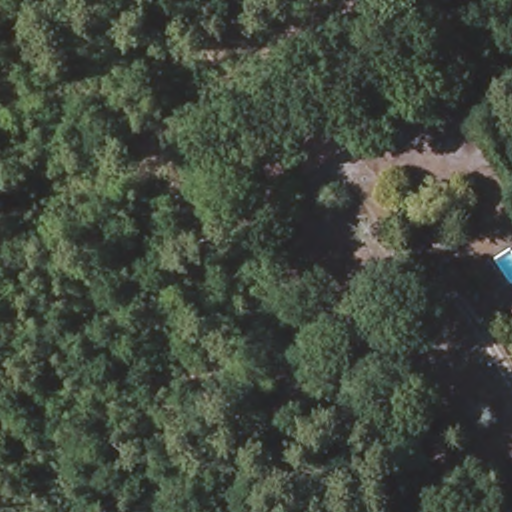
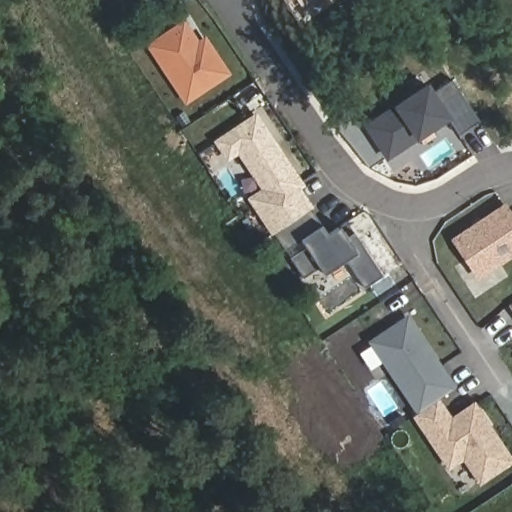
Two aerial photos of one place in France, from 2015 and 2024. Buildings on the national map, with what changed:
new [(305,0),(326,0),(312,10),(306,1),(305,0)]
new [(201,44),(208,39),(231,72),(191,100),(162,58),(154,46),(170,35),(186,23),(201,44)]
new [(435,94),(456,80),(483,121),(461,136),(450,118),(442,123),(390,157),(370,126),(430,87),(435,94)]
new [(311,209),(274,234),(251,200),(265,190),(239,151),(228,159),(217,142),(255,117),(301,185),(297,189),(311,209)]
demolished [(296,191),(274,158),(323,124),(346,157),(296,191)]
new [(512,210),(512,256),(483,276),(458,240),(509,206),(512,210)]
new [(382,277),(364,289),(345,261),(323,275),(319,269),(302,279),(290,259),(305,249),(300,242),(285,252),(274,234),(311,209),(323,227),(335,219),(340,226),(346,222),(382,277)]
new [(407,319),(453,389),(426,406),(418,412),(371,342),(407,319)]
new [(426,406),(440,427),(473,405),(483,421),(490,430),(510,461),(480,482),(463,457),(448,467),(413,415),(418,412),(426,406)]

